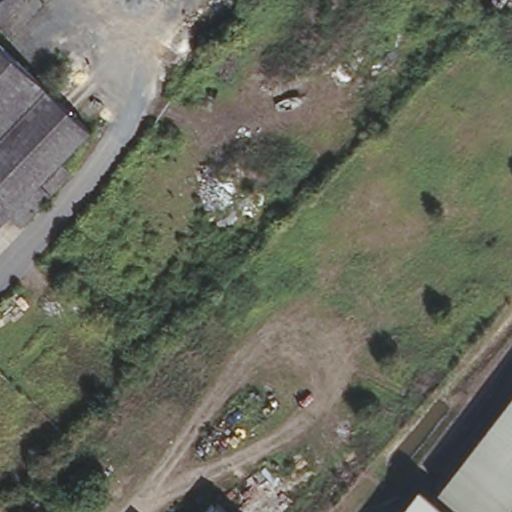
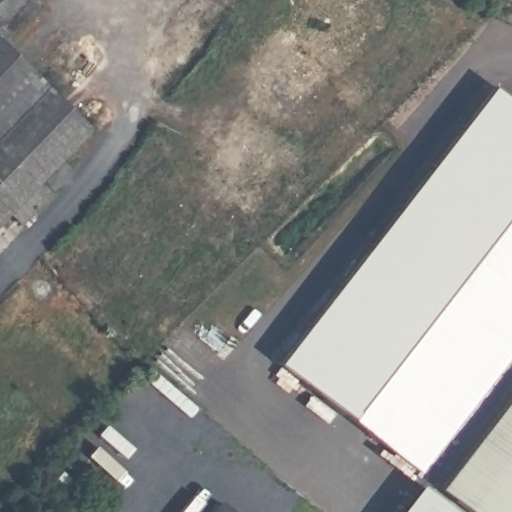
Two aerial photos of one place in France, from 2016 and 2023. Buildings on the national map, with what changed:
unchanged [(0,21),(0,0),(22,0),(0,21)]
unchanged [(59,150),(69,159),(51,177),(40,169),(36,173),(54,190),(25,220),(8,204),(0,213),(0,33),(89,118),(59,150)]
new [(495,82),(512,95),(512,338),(413,463),(278,356),(495,82)]
unchanged [(469,512),(438,488),(512,397),(512,512),(469,512)]
unchanged [(395,512),(418,483),(455,512),(395,512)]
unchanged [(202,512),(213,499),(229,512),(202,512)]

